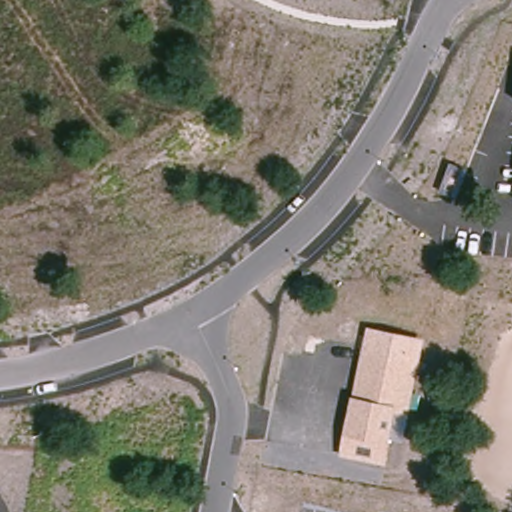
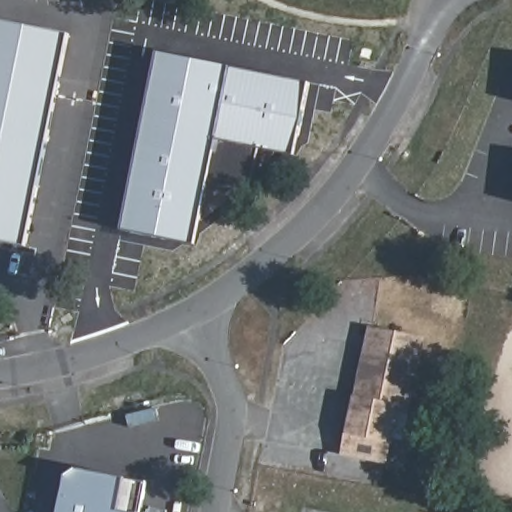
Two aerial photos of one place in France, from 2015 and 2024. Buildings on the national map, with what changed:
new [(28,248),(0,243),(0,21),(69,36),(28,248)]
new [(122,229),(158,51),(229,66),(308,83),(294,155),(215,140),(195,244),(122,229)]
unchanged [(404,441),(392,438),(391,444),(389,464),(341,456),(346,435),(354,397),(369,328),(425,340),(410,414),(404,441)]
new [(66,477),(76,470),(146,483),(141,512),(59,512),(66,477)]

